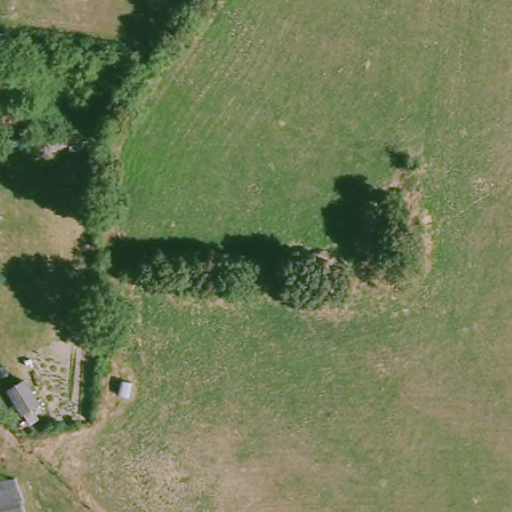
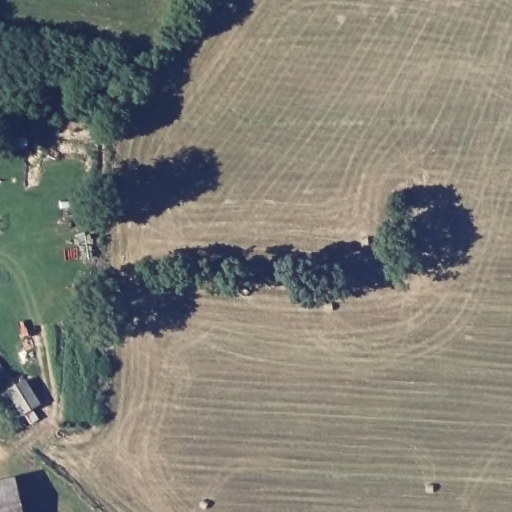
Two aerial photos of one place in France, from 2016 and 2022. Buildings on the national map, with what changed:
unchanged [(37,417),(22,395),(40,383),(52,405),(37,417)]
unchanged [(24,477),(33,512),(0,512),(0,484),(24,477)]

